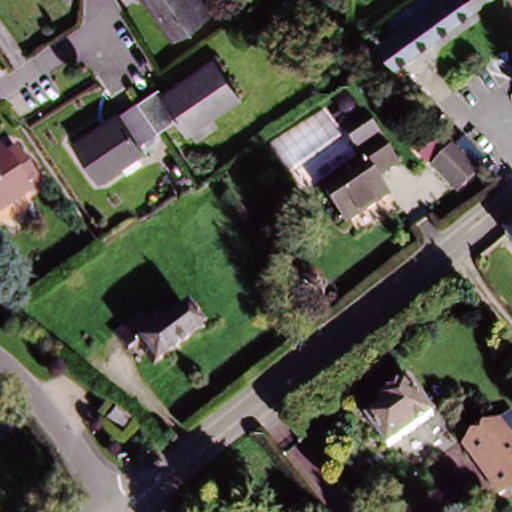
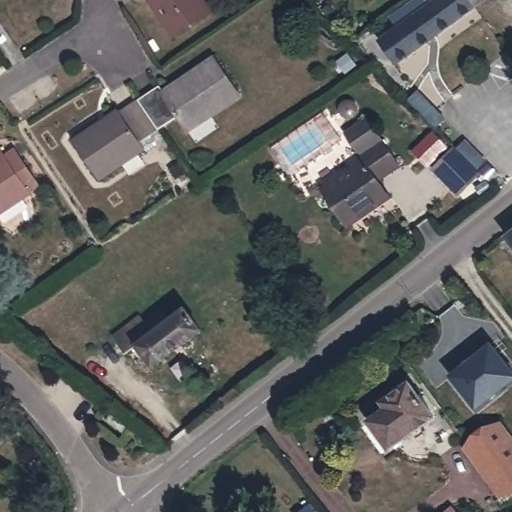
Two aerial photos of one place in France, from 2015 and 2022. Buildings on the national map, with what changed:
unchanged [(167,39),(142,0),(196,0),(205,14),(167,39)]
unchanged [(415,50),(400,60),(383,35),(398,25),(433,0),(484,0),(480,2),(415,50)]
unchanged [(137,106),(160,94),(163,99),(214,67),(238,105),(185,139),(175,124),(156,135),(137,106)]
unchanged [(139,146),(145,157),(101,184),(73,140),(117,113),(120,116),(137,106),(156,135),(139,146)]
unchanged [(400,167),(378,182),(390,199),(347,228),(322,192),(365,164),(345,133),(367,119),(400,167)]
unchanged [(425,125),(438,139),(421,156),(408,143),(425,125)]
unchanged [(456,134),(475,153),(468,160),(448,141),(456,134)]
unchanged [(443,141),(470,167),(452,186),(425,160),(443,141)]
unchanged [(15,152),(38,190),(29,196),(0,215),(0,151),(5,158),(15,152)]
unchanged [(479,156),(490,167),(482,175),(471,164),(479,156)]
unchanged [(512,235),(512,258),(500,245),(512,235)]
unchanged [(145,368),(132,351),(122,356),(106,335),(131,316),(135,322),(150,311),(160,324),(177,311),(195,333),(145,368)]
new [(481,360),(477,356),(491,345),(512,371),(512,387),(480,412),(455,381),(481,360)]
unchanged [(381,413),(375,405),(402,385),(430,420),(385,452),(365,426),(381,413)]
unchanged [(491,426),(512,413),(512,454),(491,426)]
unchanged [(459,449),(491,426),(512,454),(512,487),(497,497),(459,449)]

